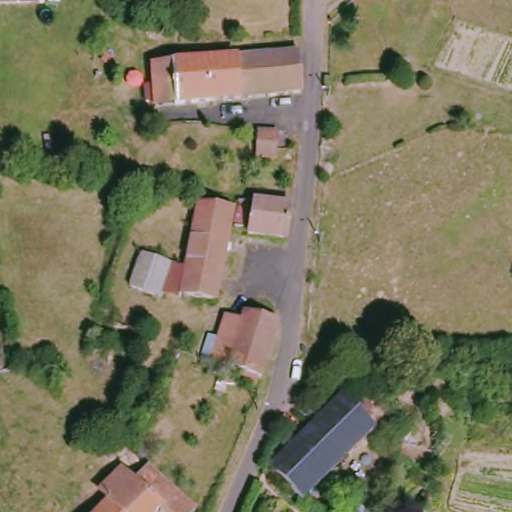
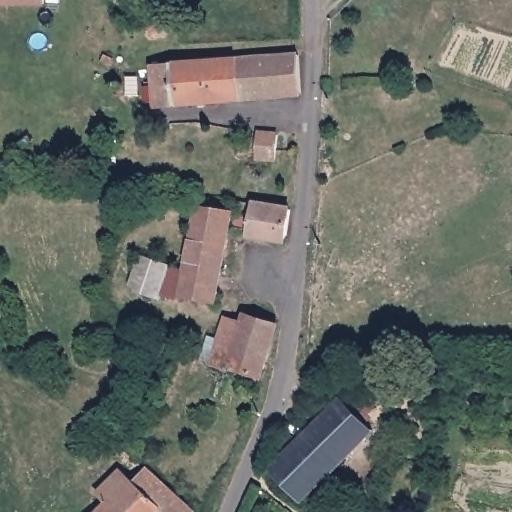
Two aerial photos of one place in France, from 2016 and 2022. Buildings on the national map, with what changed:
unchanged [(0,5),(0,0),(40,0),(40,4),(0,5)]
unchanged [(148,65),(300,54),(301,99),(152,107),(148,65)]
unchanged [(277,165),(258,164),(258,137),(277,138),(277,165)]
unchanged [(287,206),(282,239),(246,233),(247,229),(232,226),(237,198),(251,200),(287,206)]
unchanged [(182,261),(195,204),(228,212),(210,300),(177,293),(176,298),(158,293),(159,300),(127,300),(126,266),(155,263),(182,261)]
unchanged [(253,379),(237,377),(237,375),(238,365),(227,363),(224,365),(198,359),(203,335),(210,336),(215,315),(231,318),(232,310),(270,318),(258,370),(254,370),(253,378),(253,379)]
unchanged [(335,396),(362,423),(290,493),(261,466),(335,396)]
unchanged [(158,511),(158,512),(97,512),(107,501),(100,492),(121,468),(135,481),(148,468),(193,512),(160,512),(158,511)]

